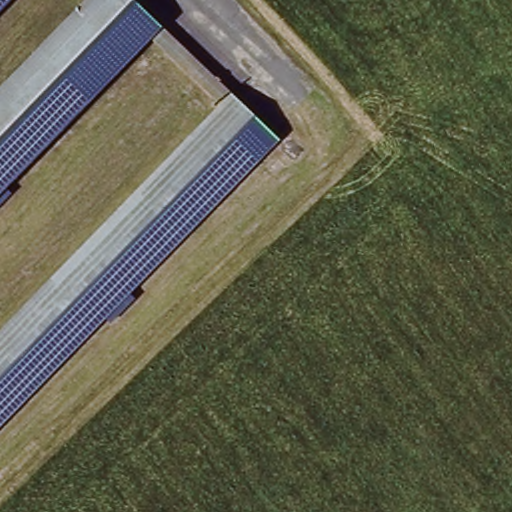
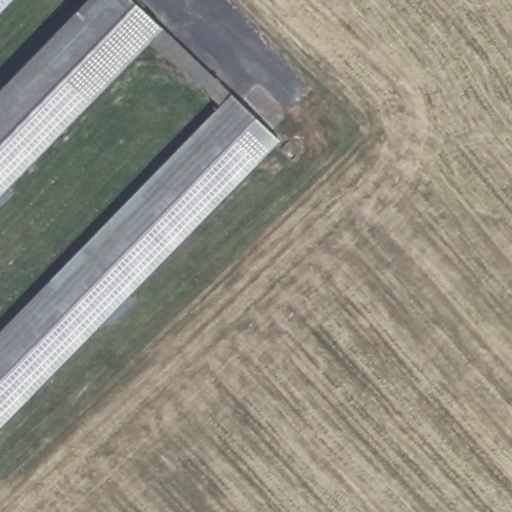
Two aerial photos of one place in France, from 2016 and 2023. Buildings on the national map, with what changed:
unchanged [(7,0),(0,7),(0,0),(7,0)]
unchanged [(0,191),(0,94),(91,0),(131,0),(159,27),(0,191)]
unchanged [(230,96),(277,141),(0,431),(0,337),(230,96)]

